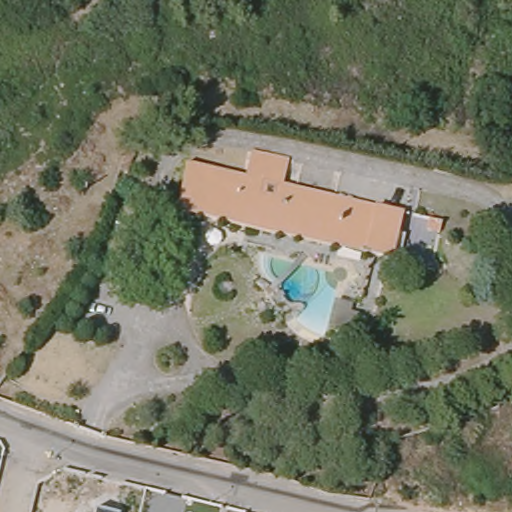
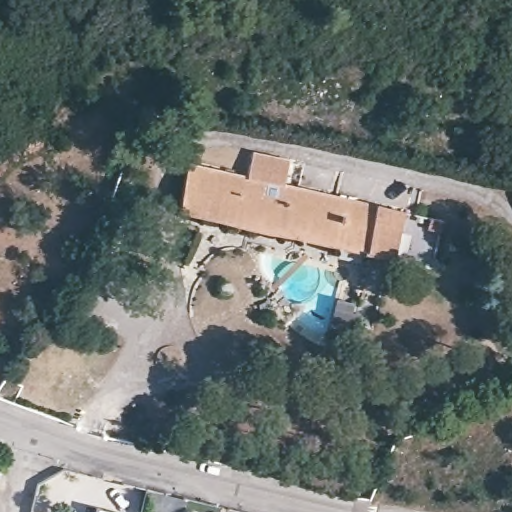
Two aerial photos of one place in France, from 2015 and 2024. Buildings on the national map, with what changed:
unchanged [(246,177),(252,151),(289,159),(283,184),(403,212),(393,259),(178,212),(186,163),(246,177)]
unchanged [(427,229),(430,218),(442,220),(440,232),(427,229)]
unchanged [(336,299),(353,304),(351,311),(358,313),(354,332),(329,325),(336,299)]
unchanged [(96,509),(111,512),(95,512),(96,509)]

